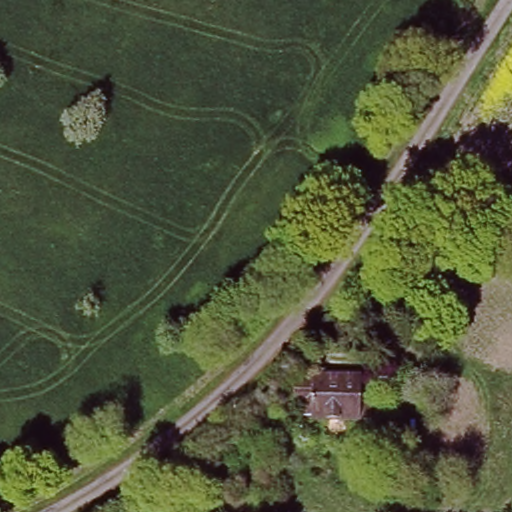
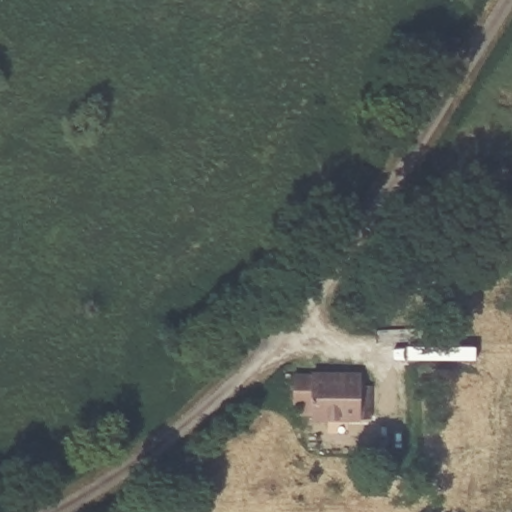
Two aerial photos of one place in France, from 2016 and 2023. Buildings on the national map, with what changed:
unchanged [(308,404),(304,404),(304,372),(322,373),(322,370),(368,371),(368,384),(381,384),(381,418),(323,417),(323,413),(308,413),(308,404)]

